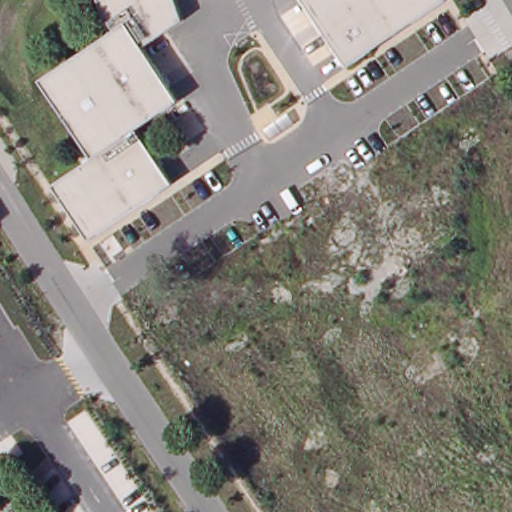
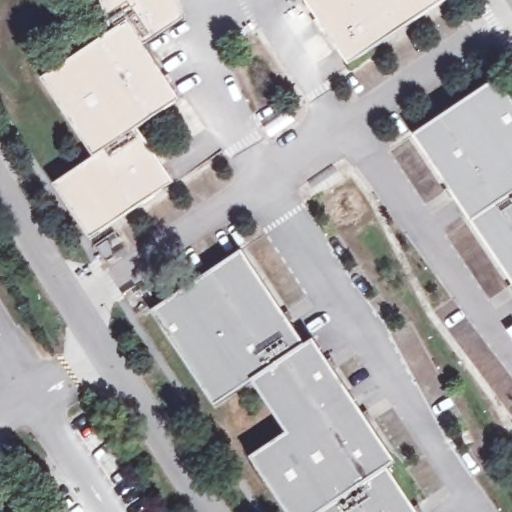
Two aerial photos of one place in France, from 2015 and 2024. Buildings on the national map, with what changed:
unchanged [(184,19),(145,46),(180,99),(139,127),(172,183),(91,236),(56,186),(95,157),(44,79),(113,31),(104,4),(102,0),(177,0),(184,19)]
unchanged [(350,61),(306,0),(441,0),(350,61)]
unchanged [(414,136),(499,80),(512,101),(512,284),(471,222),(414,136)]
new [(150,311),(240,251),(305,346),(313,340),(395,463),(387,468),(416,512),(286,512),(249,457),(287,433),(251,381),(214,407),(150,311)]

